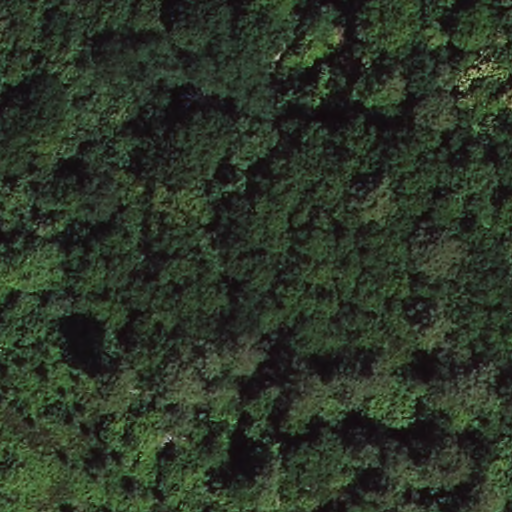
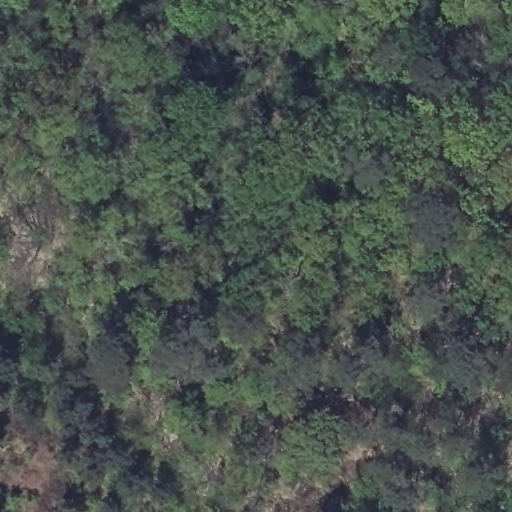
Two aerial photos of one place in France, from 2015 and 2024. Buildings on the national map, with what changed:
unchanged [(363,62),(329,0),(353,0),(381,51),(363,62)]
unchanged [(237,109),(229,94),(243,85),(252,100),(237,109)]
unchanged [(296,146),(283,128),(307,111),(320,131),(296,146)]

